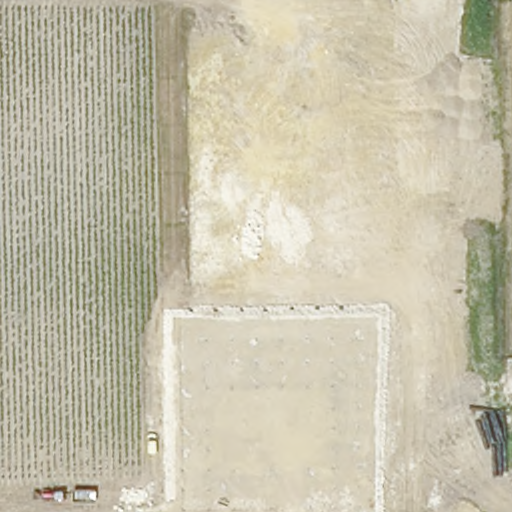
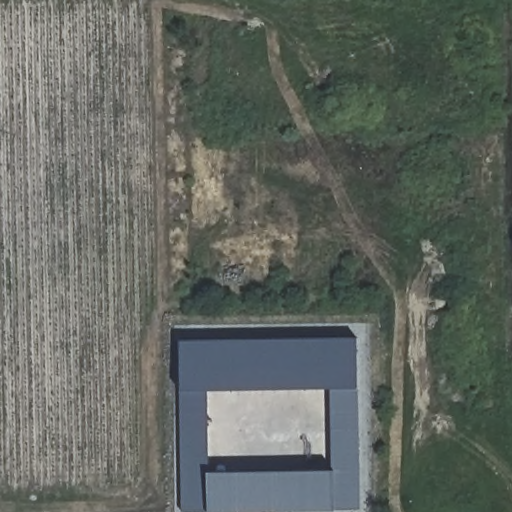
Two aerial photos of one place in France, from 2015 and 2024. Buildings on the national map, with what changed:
new [(334,508),(209,509),(183,509),(182,389),(179,339),(356,335),(359,388),(362,506),(334,508)]
demolished [(486,411),(488,440),(504,439),(504,455),(488,456),(489,472),(423,476),(420,415),(486,411)]
demolished [(189,485),(219,483),(221,502),(191,505),(189,485)]

